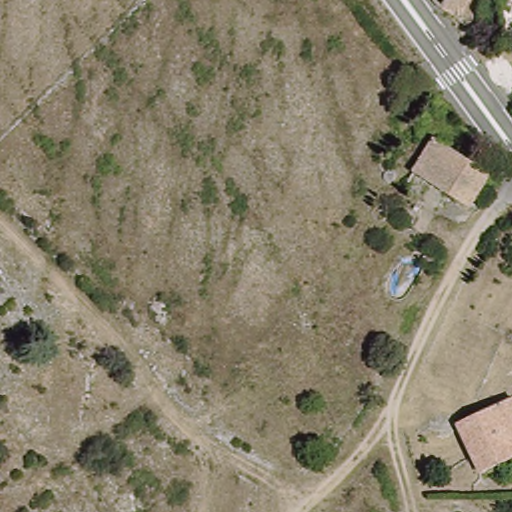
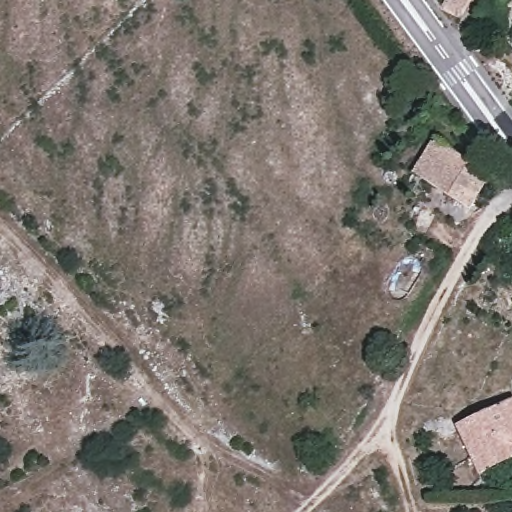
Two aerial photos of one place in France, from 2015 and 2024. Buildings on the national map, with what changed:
unchanged [(463,21),(441,10),(446,0),(476,0),(463,21)]
unchanged [(445,110),(430,100),(437,90),(450,100),(445,110)]
unchanged [(406,180),(426,146),(451,161),(482,181),(462,214),(430,195),(406,180)]
unchanged [(512,401),(512,452),(501,457),(480,468),(456,423),(509,395),(512,401)]

